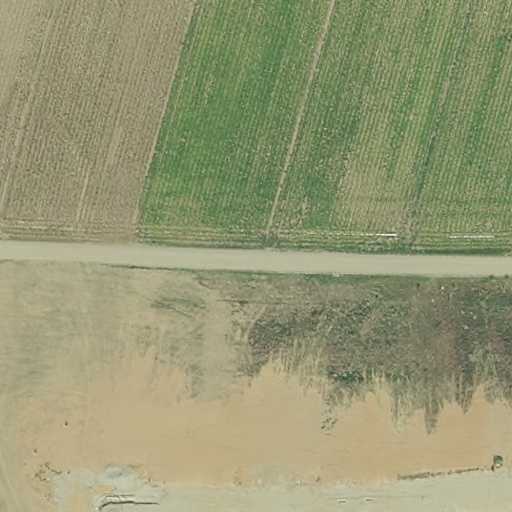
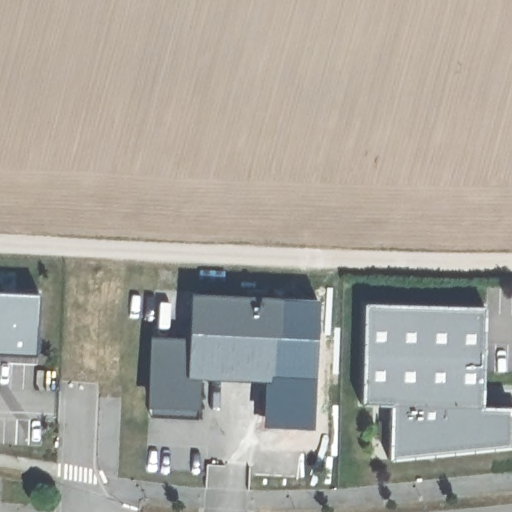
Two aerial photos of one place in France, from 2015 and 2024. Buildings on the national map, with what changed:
new [(40,291),(34,357),(0,356),(0,290),(40,291)]
new [(197,418),(151,416),(151,401),(153,341),(194,343),(197,293),(272,297),(269,373),(193,370),(199,370),(197,418)]
new [(319,298),(316,377),(312,429),(263,429),(269,373),(272,297),(319,298)]
new [(363,302),(484,305),(482,405),(512,406),(512,408),(511,446),(388,458),(389,404),(359,401),(363,302)]

